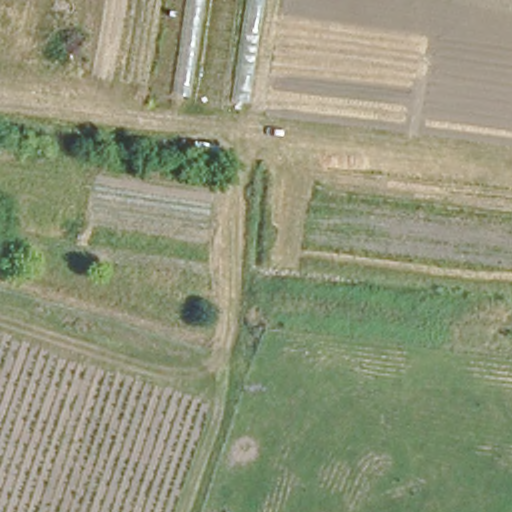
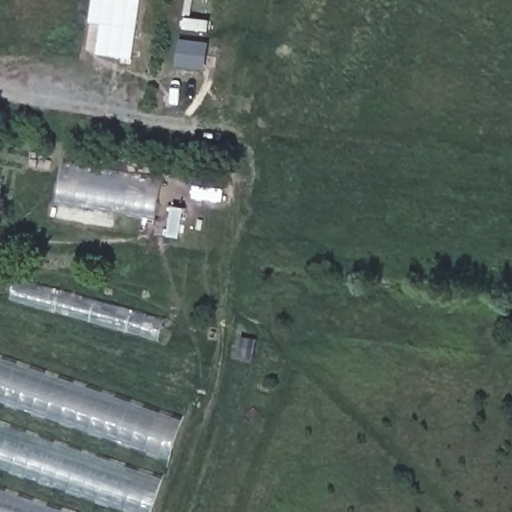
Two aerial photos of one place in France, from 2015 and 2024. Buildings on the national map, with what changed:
new [(133,59),(97,54),(102,24),(90,22),(93,0),(142,0),(133,59)]
new [(205,70),(175,66),(179,38),(209,42),(205,70)]
new [(155,216),(55,200),(60,162),(162,178),(155,216)]
new [(159,338),(10,298),(15,280),(165,319),(159,338)]
new [(0,400),(0,357),(185,420),(170,457),(0,400)]
new [(133,512),(0,466),(0,422),(164,479),(153,512),(133,512)]
new [(0,512),(0,488),(72,512),(0,512)]

